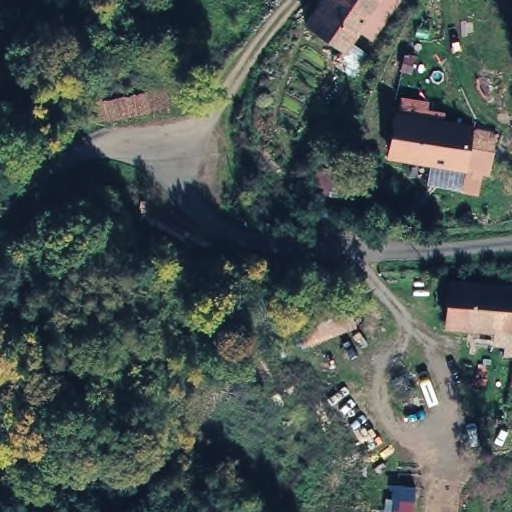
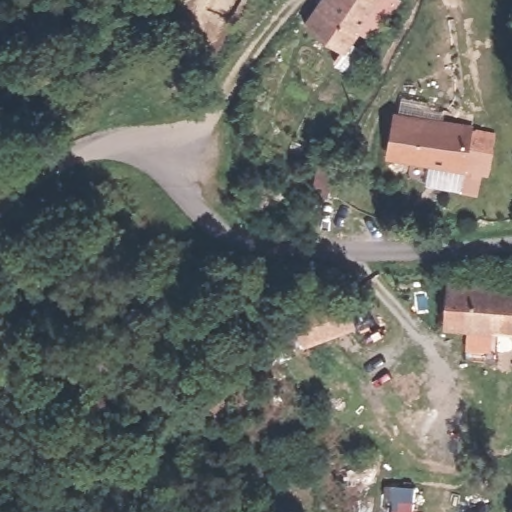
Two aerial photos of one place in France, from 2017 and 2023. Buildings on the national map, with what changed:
unchanged [(331,41),(296,15),(308,0),(362,0),(341,29),(359,44),(341,66),(323,51),(331,41)]
unchanged [(471,122),(459,172),(386,156),(397,107),(471,122)]
unchanged [(512,334),(439,326),(443,280),(512,287),(512,334)]

